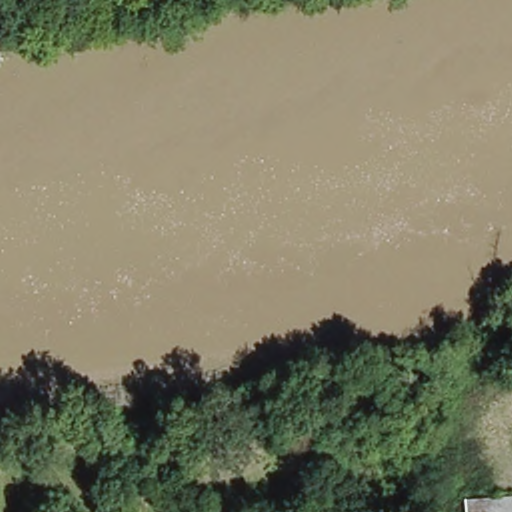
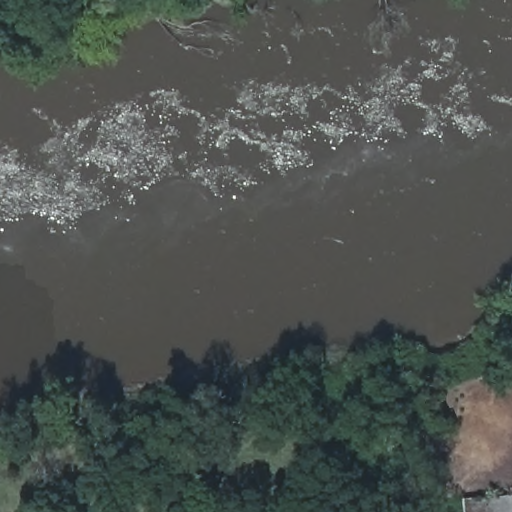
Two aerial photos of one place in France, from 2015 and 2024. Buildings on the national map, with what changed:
unchanged [(512,497),(512,512),(460,512),(460,499),(512,497)]

